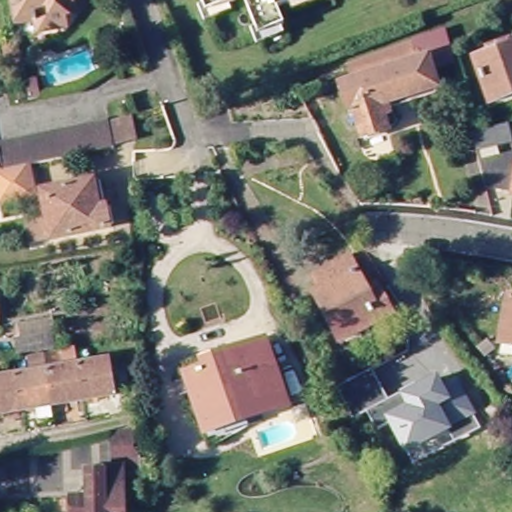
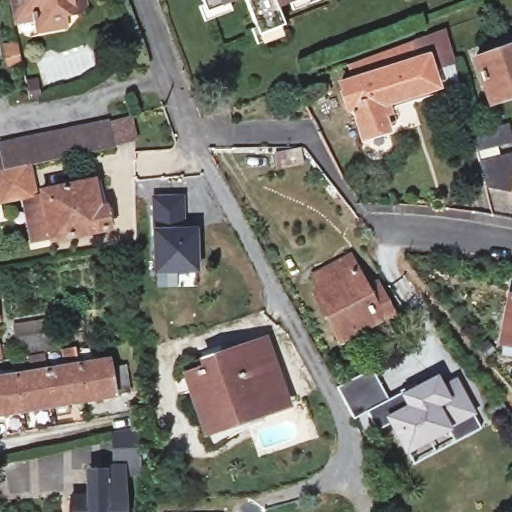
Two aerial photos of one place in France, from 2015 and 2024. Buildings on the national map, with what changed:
unchanged [(85,0),(87,9),(83,14),(68,18),(69,28),(48,31),(36,24),(15,28),(14,22),(9,0),(85,0)]
unchanged [(284,27),(257,38),(242,1),(206,16),(199,0),(306,0),(278,11),(284,27)]
unchanged [(512,45),(512,94),(491,103),(475,59),(491,52),(489,46),(509,39),(511,46),(512,45)]
unchanged [(21,64),(8,67),(4,46),(18,44),(21,64)]
unchanged [(366,91),(361,94),(355,79),(419,55),(450,44),(458,74),(443,79),(438,63),(428,65),(430,72),(366,91)]
unchanged [(430,72),(431,72),(440,103),(390,119),(395,135),(389,137),(391,144),(366,152),(357,122),(352,124),(344,99),(361,94),(366,91),(430,72)]
unchanged [(36,84),(38,94),(29,95),(26,85),(36,84)]
unchanged [(1,177),(0,177),(0,147),(4,146),(3,143),(111,119),(133,115),(138,137),(117,141),(119,147),(30,165),(36,195),(6,201),(1,177)]
unchanged [(512,133),(512,154),(483,162),(477,142),(512,133)]
unchanged [(281,168),(277,154),(303,147),(313,160),(281,168)]
unchanged [(512,163),(512,200),(492,197),(491,193),(485,171),(512,163)]
unchanged [(47,242),(44,226),(53,224),(46,192),(98,182),(103,209),(111,208),(115,229),(47,242)]
new [(151,193),(186,193),(186,225),(151,226),(151,193)]
new [(186,225),(199,225),(199,274),(180,275),(181,287),(156,288),(151,226),(186,225)]
unchanged [(11,247),(31,243),(34,260),(15,264),(11,247)]
unchanged [(315,294),(321,291),(313,278),(351,258),(370,294),(380,290),(393,314),(340,341),(315,294)]
unchanged [(511,294),(512,295),(512,354),(503,353),(505,343),(502,342),(511,294)]
unchanged [(0,320),(0,315),(1,319),(0,320)]
unchanged [(59,318),(65,349),(23,357),(19,339),(23,338),(21,324),(59,318)]
unchanged [(293,401),(255,414),(258,422),(216,436),(194,371),(207,366),(204,359),(227,351),(271,335),(293,401)]
unchanged [(116,369),(130,367),(134,394),(0,417),(0,380),(114,360),(116,369)]
unchanged [(454,443),(446,428),(405,449),(391,424),(376,432),(366,413),(353,420),(336,388),(371,369),(388,400),(400,394),(399,392),(414,384),(417,389),(436,379),(441,389),(455,382),(472,414),(480,429),(454,443)]
unchanged [(495,417),(506,409),(512,416),(512,433),(509,436),(495,417)]
unchanged [(126,477),(126,512),(75,512),(75,497),(99,497),(99,492),(91,492),(91,439),(145,440),(145,478),(126,477)]

